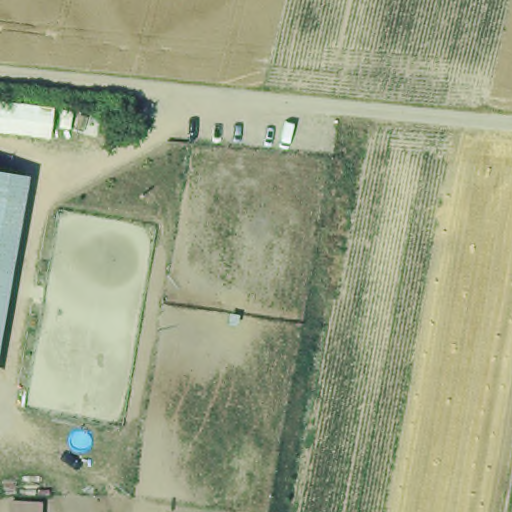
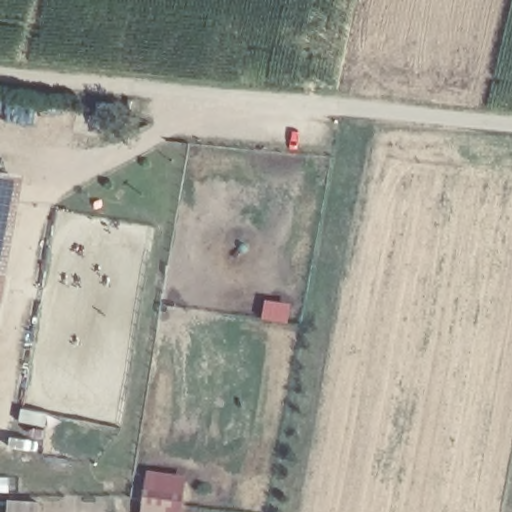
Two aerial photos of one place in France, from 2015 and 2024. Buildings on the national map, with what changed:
unchanged [(0,255),(0,170),(15,173),(0,255)]
new [(185,477),(180,512),(140,512),(144,472),(185,477)]

